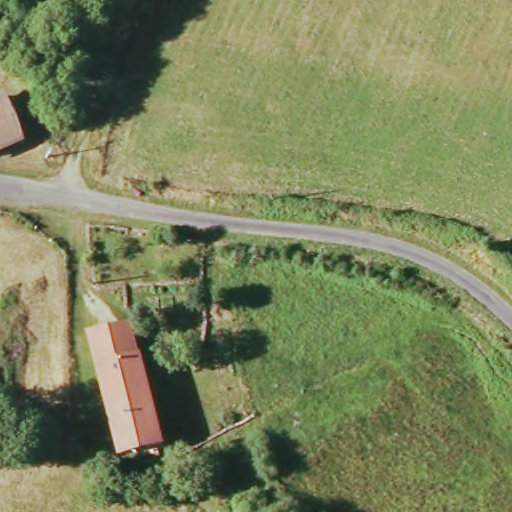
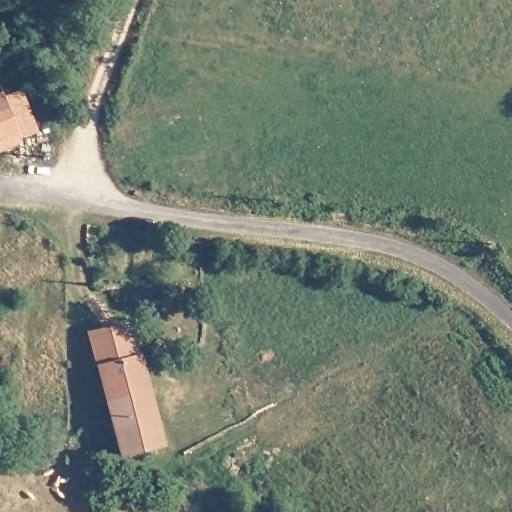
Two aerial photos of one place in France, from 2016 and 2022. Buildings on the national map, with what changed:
unchanged [(0,147),(0,106),(16,140),(0,147)]
unchanged [(117,457),(97,364),(127,359),(137,357),(159,444),(117,457)]

